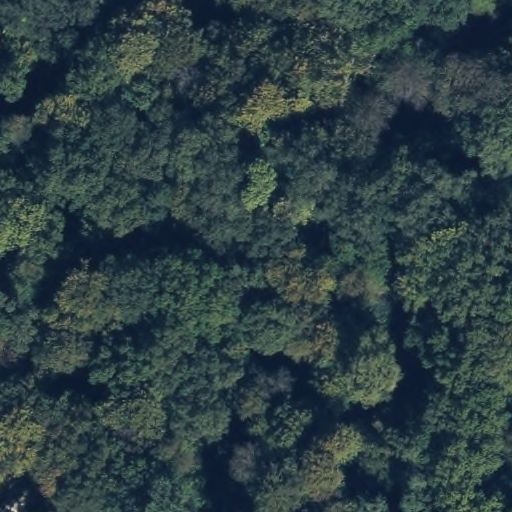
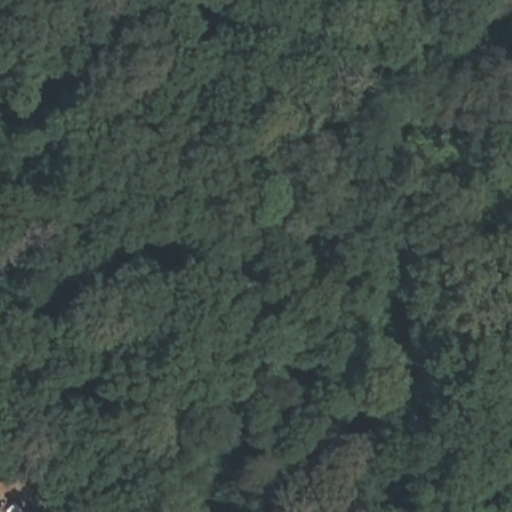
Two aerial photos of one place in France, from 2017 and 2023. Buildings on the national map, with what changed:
unchanged [(29,512),(2,512),(18,496),(29,512)]

